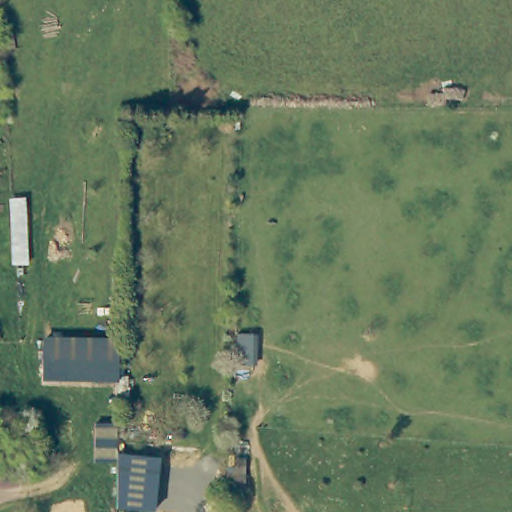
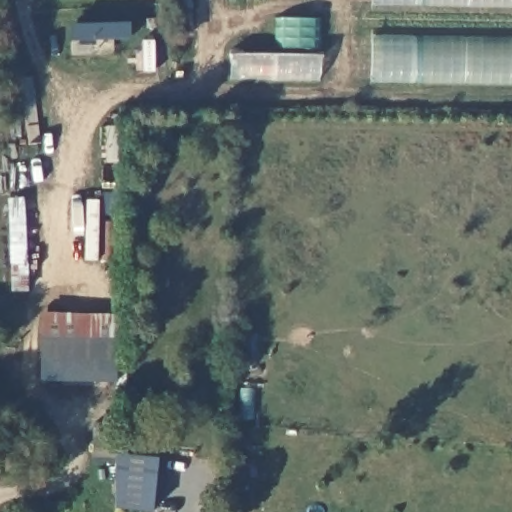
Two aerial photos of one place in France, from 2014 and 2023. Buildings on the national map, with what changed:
new [(371,5),(371,0),(512,0),(512,7),(371,5)]
new [(323,79),(231,78),(232,55),(276,54),(277,17),(324,17),(323,79)]
new [(132,41),(70,43),(69,23),(130,22),(132,41)]
new [(371,82),(372,36),(512,38),(512,84),(371,82)]
new [(42,336),(44,313),(115,316),(114,337),(42,336)]
unchanged [(42,336),(114,337),(113,379),(42,377),(42,336)]
unchanged [(149,508),(124,506),(129,461),(155,463),(149,508)]

